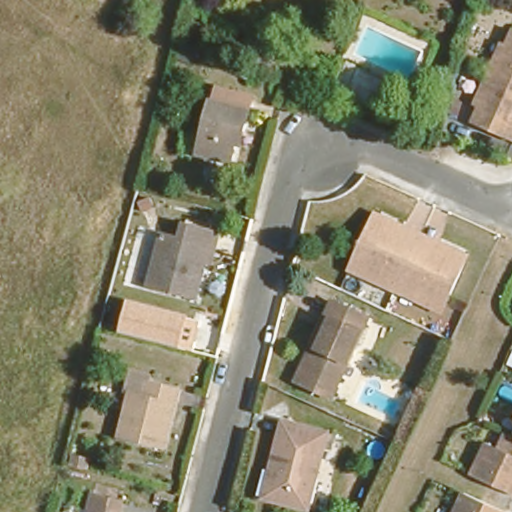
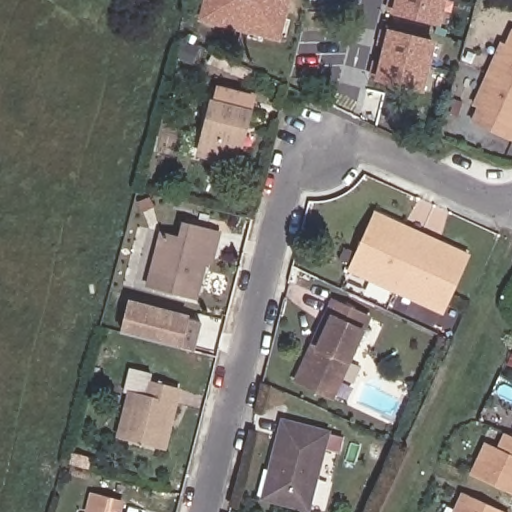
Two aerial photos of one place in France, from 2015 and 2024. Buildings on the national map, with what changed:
new [(200,21),(206,0),(294,0),(283,42),(200,21)]
new [(393,14),(397,0),(449,0),(443,26),(393,14)]
new [(391,30),(436,41),(424,92),(377,80),(391,30)]
unchanged [(482,106),(470,102),(496,41),(507,45),(512,34),(512,139),(474,123),(482,106)]
demolished [(394,113),(337,89),(347,61),(398,83),(394,113)]
unchanged [(237,132),(232,150),(202,141),(215,89),(253,99),(247,120),(243,133),(237,132)]
unchanged [(375,209),(400,220),(437,237),(466,250),(439,308),(349,266),(375,209)]
unchanged [(147,279),(161,223),(179,227),(184,212),(217,222),(213,238),(209,256),(201,254),(192,291),(147,279)]
unchanged [(180,348),(121,331),(129,298),(189,314),(180,348)]
unchanged [(311,345),(332,299),(368,316),(333,395),(302,381),(296,378),(311,345)]
unchanged [(117,431),(130,382),(147,387),(150,373),(178,381),(162,443),(117,431)]
unchanged [(268,467),(282,418),(328,433),(307,506),(270,495),(260,492),(268,467)]
unchanged [(481,443),(494,449),(502,433),(512,438),(512,490),(469,471),(481,443)]
unchanged [(464,490),(468,491),(499,505),(512,510),(512,512),(455,512),(464,490)]
unchanged [(98,510),(91,509),(95,492),(121,499),(118,512),(98,512),(98,510)]

